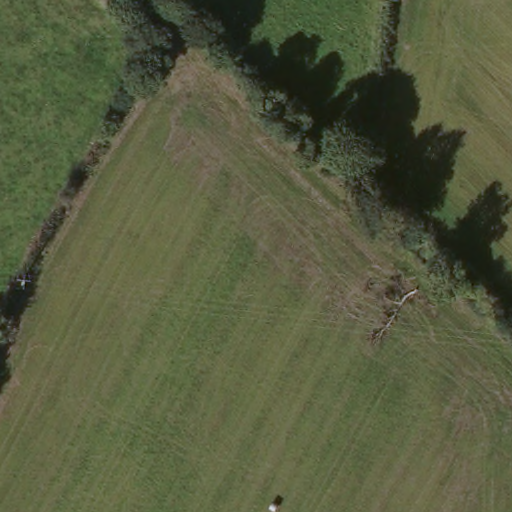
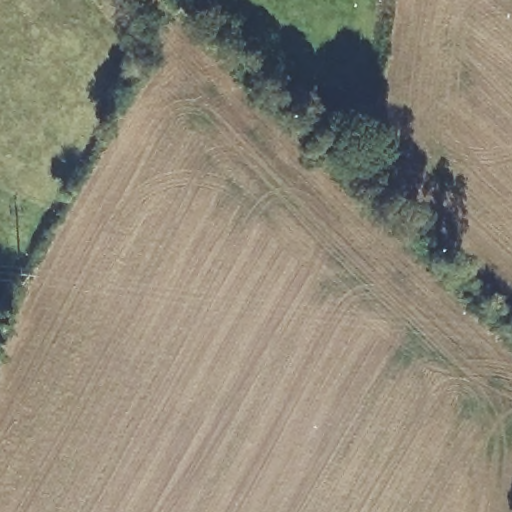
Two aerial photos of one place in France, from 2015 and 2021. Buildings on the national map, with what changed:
[]

